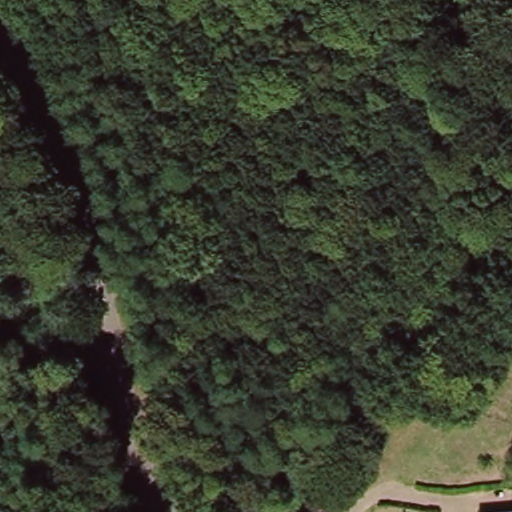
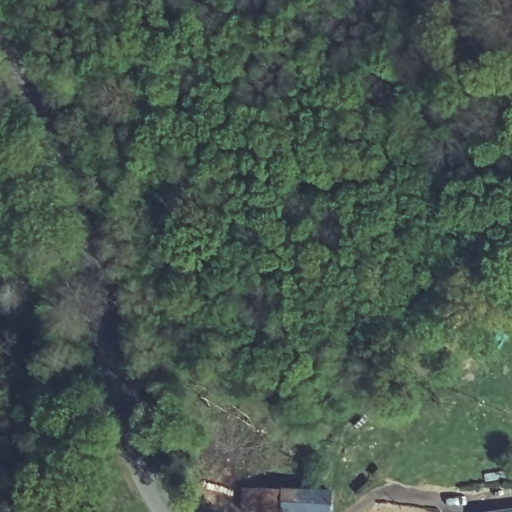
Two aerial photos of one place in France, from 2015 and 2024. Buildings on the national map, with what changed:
new [(280,487),(331,489),(330,512),(279,512),(280,487)]

